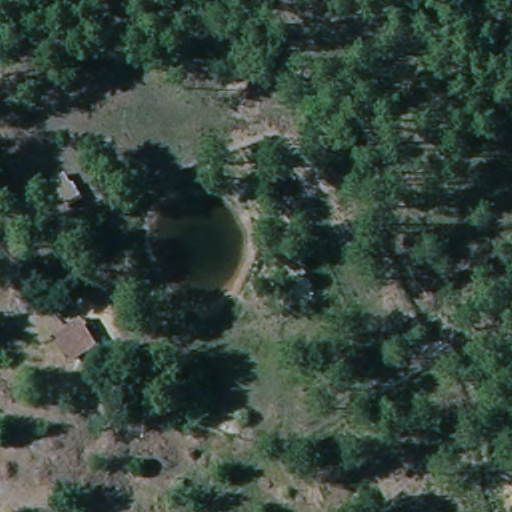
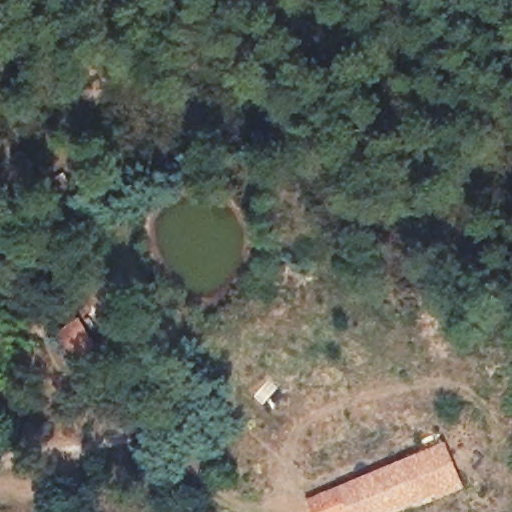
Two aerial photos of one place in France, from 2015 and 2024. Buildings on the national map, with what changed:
unchanged [(55,336),(85,319),(103,350),(75,367),(55,336)]
new [(438,496),(401,512),(351,512),(340,488),(447,443),(467,489),(440,500),(438,496)]

